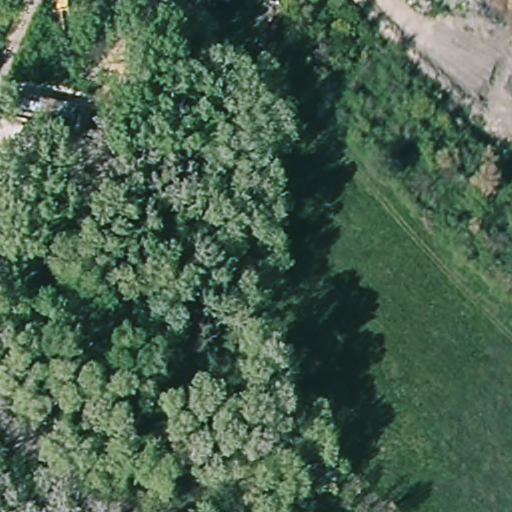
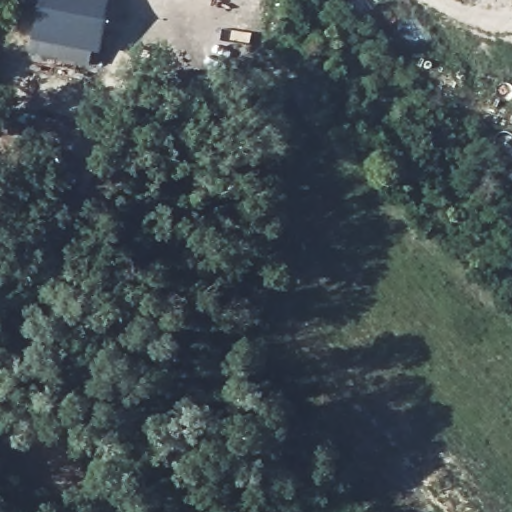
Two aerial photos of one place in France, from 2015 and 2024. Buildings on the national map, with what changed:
new [(100,51),(31,38),(39,0),(109,0),(100,51)]

